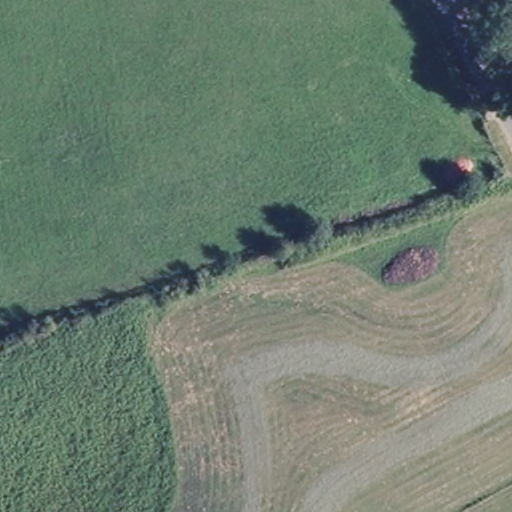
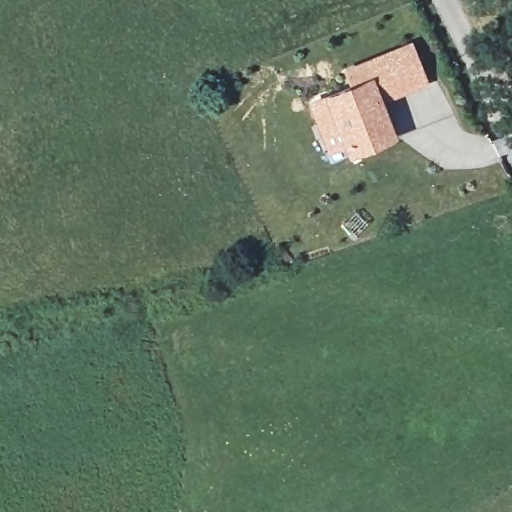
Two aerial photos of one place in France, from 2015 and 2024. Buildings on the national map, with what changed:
new [(316,126),(309,106),(351,90),(346,77),(390,61),(408,54),(420,85),(402,92),(373,102),(385,135),(344,151),(342,145),(326,151),(316,126)]

